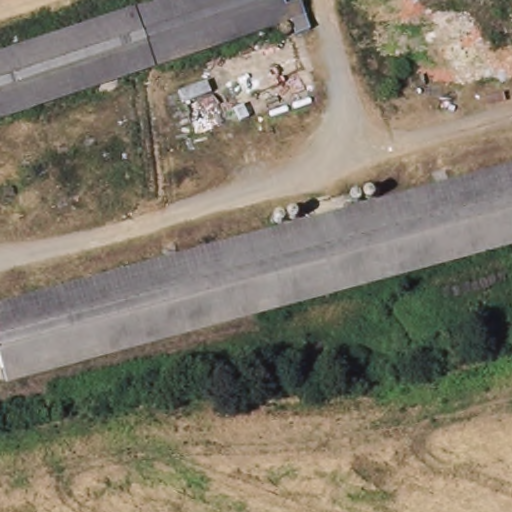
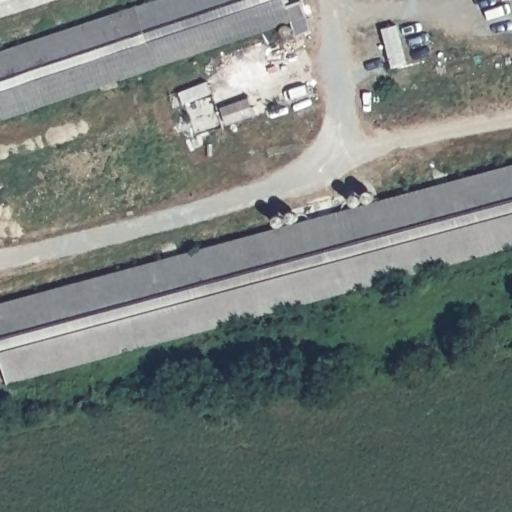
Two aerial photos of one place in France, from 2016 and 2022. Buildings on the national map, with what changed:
unchanged [(157,0),(286,0),(287,5),(301,3),(304,21),(292,22),(294,35),(284,38),(280,27),(0,122),(0,52),(157,0)]
unchanged [(0,359),(0,303),(275,226),(274,225),(271,219),(276,215),(293,210),(297,213),(298,220),(350,205),(348,199),(350,196),(371,190),(375,191),(376,200),(512,163),(512,246),(6,383),(0,359)]

